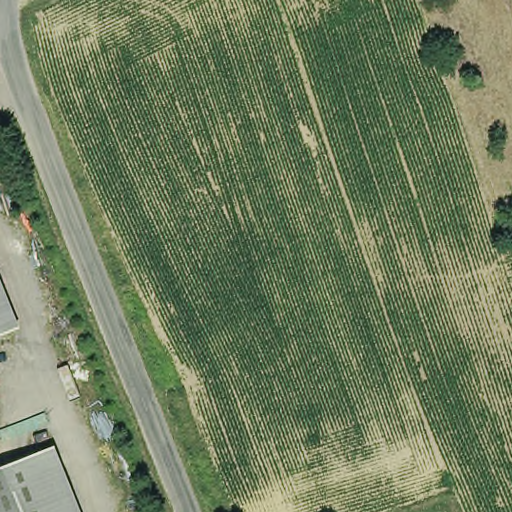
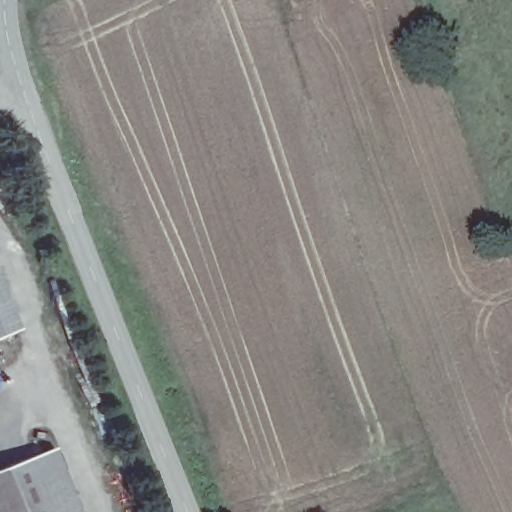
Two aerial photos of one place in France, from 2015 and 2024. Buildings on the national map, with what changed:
unchanged [(0,332),(0,279),(18,325),(0,332)]
unchanged [(78,512),(58,512),(33,451),(51,445),(78,512)]
unchanged [(0,465),(33,451),(58,512),(0,512),(0,465)]

